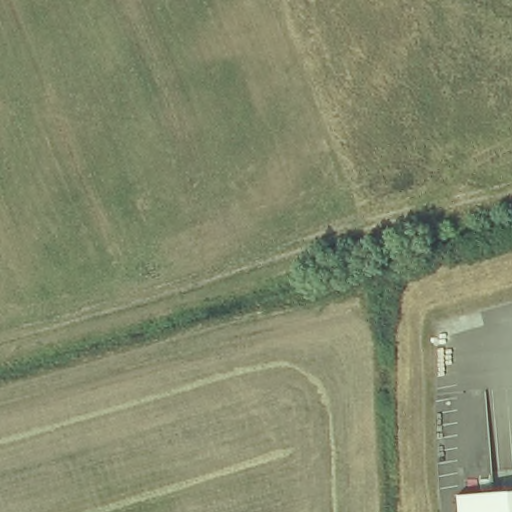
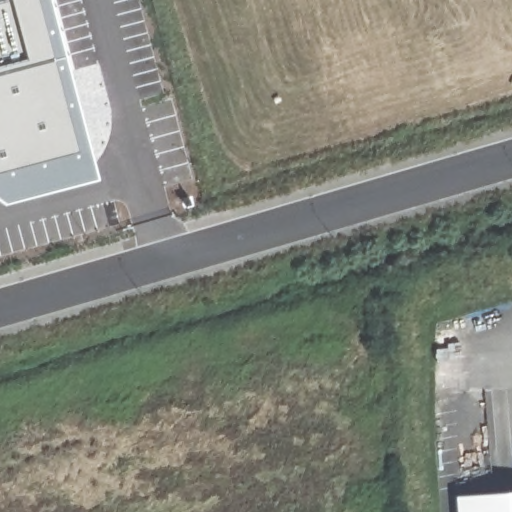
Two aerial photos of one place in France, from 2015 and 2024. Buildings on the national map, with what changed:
new [(17,199),(0,188),(0,0),(60,0),(106,180),(17,199)]
unchanged [(512,492),(512,512),(458,512),(457,496),(512,492)]

